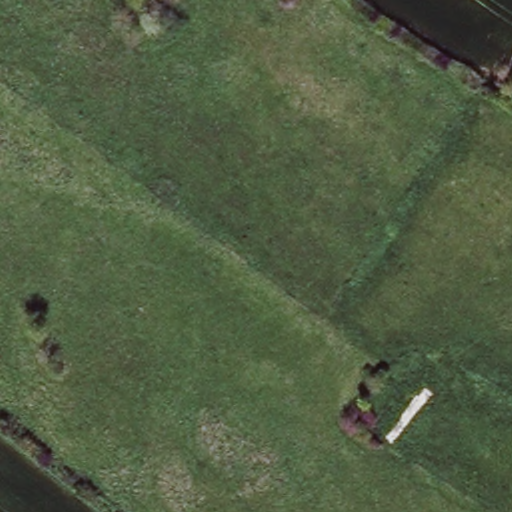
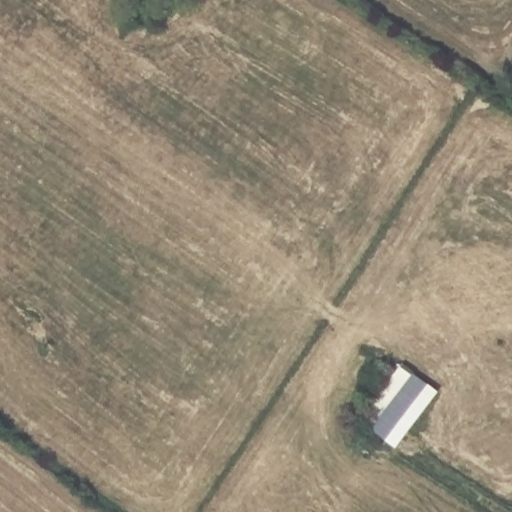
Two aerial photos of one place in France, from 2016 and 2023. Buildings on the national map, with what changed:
new [(395,450),(373,432),(387,410),(373,400),(399,363),(440,392),(395,450)]
demolished [(429,390),(409,413),(392,400),(409,377),(429,390)]
demolished [(407,420),(386,443),(369,430),(389,406),(407,420)]

